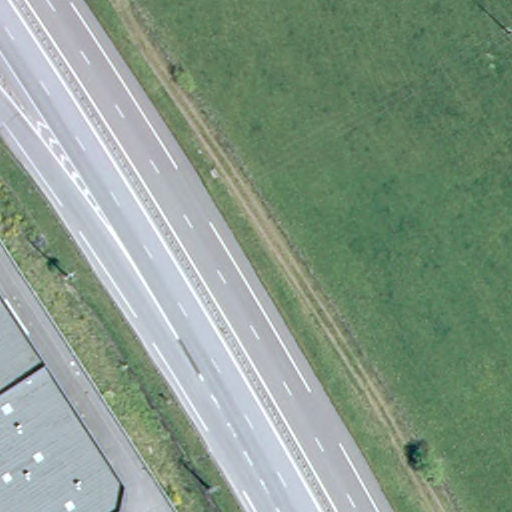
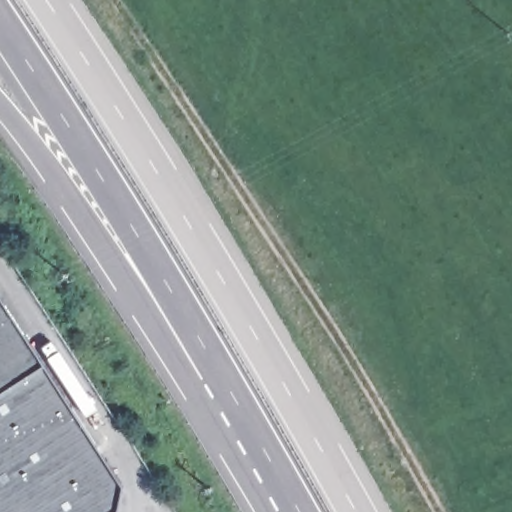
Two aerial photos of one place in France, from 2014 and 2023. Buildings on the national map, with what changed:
unchanged [(123,486),(118,512),(117,512),(0,512),(0,295),(123,486)]

